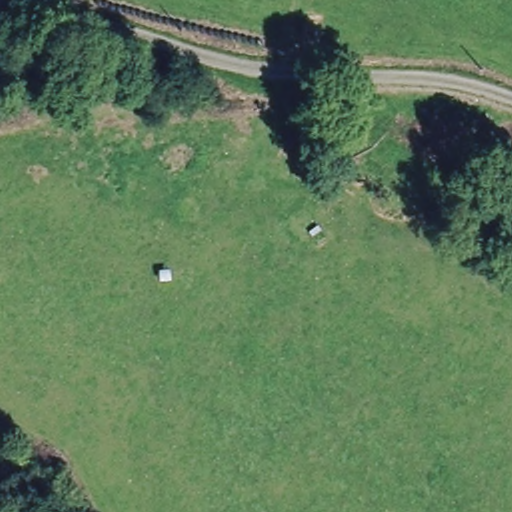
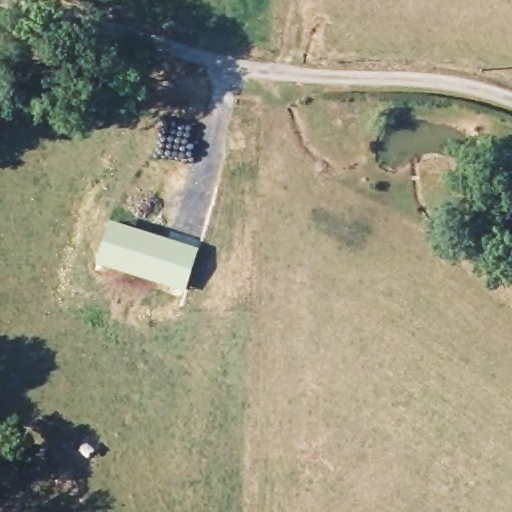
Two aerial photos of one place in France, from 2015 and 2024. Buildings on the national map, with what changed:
new [(108,219),(199,247),(185,293),(95,264),(108,219)]

